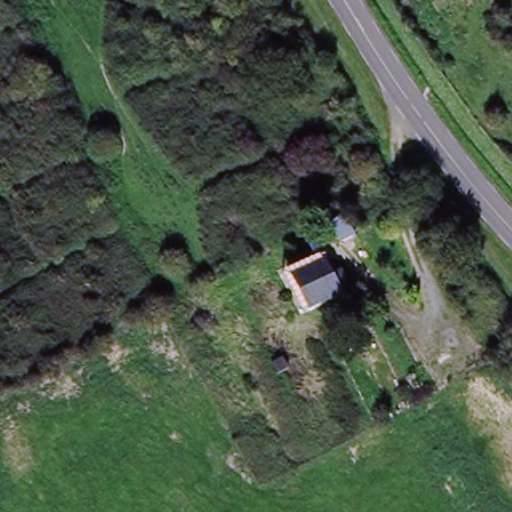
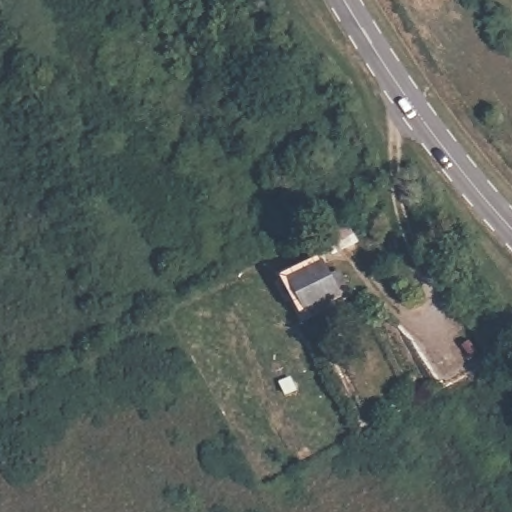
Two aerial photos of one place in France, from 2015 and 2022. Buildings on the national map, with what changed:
unchanged [(337,273),(341,283),(335,286),(339,294),(307,309),(300,312),(282,275),(319,257),(322,264),(328,277),(337,273)]

